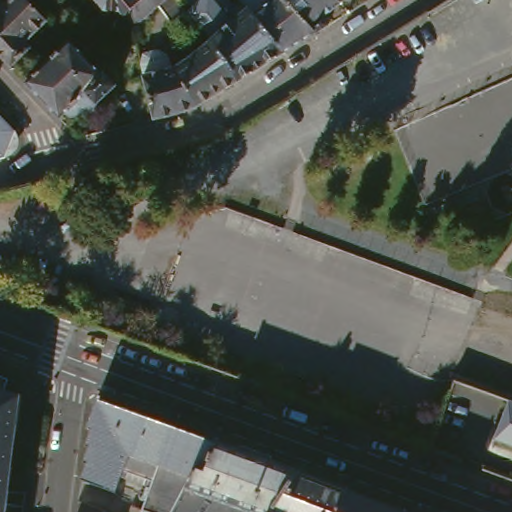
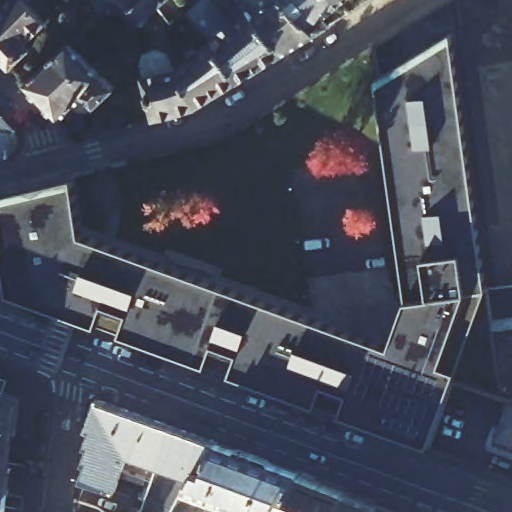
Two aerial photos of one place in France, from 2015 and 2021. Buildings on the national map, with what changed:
unchanged [(28,2),(30,0),(49,0),(44,5),(61,24),(40,44),(45,49),(26,68),(10,52),(0,42),(0,28),(28,2)]
unchanged [(129,6),(112,6),(113,2),(111,0),(129,0),(129,6)]
unchanged [(196,9),(187,15),(180,19),(167,2),(155,12),(163,46),(147,50),(142,22),(129,6),(129,0),(189,0),(196,9)]
unchanged [(295,48),(291,44),(276,27),(265,14),(281,0),(299,0),(324,30),(295,48)]
unchanged [(332,14),(338,22),(324,30),(299,0),(349,0),(332,14)]
demolished [(442,22),(435,9),(448,0),(451,0),(457,12),(442,22)]
demolished [(495,0),(501,0),(497,2),(495,0)]
unchanged [(264,67),(247,77),(238,59),(220,39),(221,37),(234,27),(220,12),(234,1),(247,16),(258,7),(265,14),(276,27),(291,44),(295,48),(264,67)]
new [(486,292),(456,372),(426,447),(341,416),(326,410),(315,405),(231,374),(217,372),(205,366),(122,335),(106,331),(96,326),(9,295),(0,227),(0,197),(74,179),(81,237),(390,348),(406,303),(378,80),(452,32),(486,292)]
unchanged [(185,64),(198,55),(194,50),(203,43),(207,49),(220,39),(238,59),(247,77),(224,92),(223,92),(208,102),(205,104),(163,116),(152,72),(185,64)]
unchanged [(111,72),(114,70),(126,83),(103,101),(107,107),(81,114),(75,110),(70,116),(36,81),(81,40),(111,72)]
unchanged [(26,127),(15,155),(0,158),(0,99),(26,127)]
unchanged [(31,396),(20,488),(35,490),(34,512),(0,512),(0,385),(31,396)]
unchanged [(142,461),(130,457),(116,492),(81,482),(89,430),(92,421),(100,401),(143,417),(165,425),(205,440),(220,445),(217,452),(207,474),(195,469),(192,475),(175,512),(142,512),(160,467),(142,461)]
unchanged [(512,447),(495,441),(507,403),(512,404),(512,447)]
unchanged [(175,512),(192,475),(195,469),(207,474),(217,452),(220,445),(302,477),(275,512),(175,512)]
unchanged [(350,495),(343,512),(275,512),(302,477),(350,495)]
unchanged [(343,512),(350,495),(393,512),(343,512)]
unchanged [(104,512),(77,512),(78,503),(104,512)]

